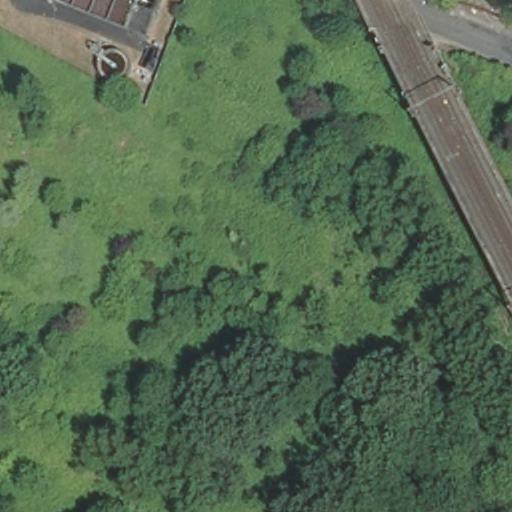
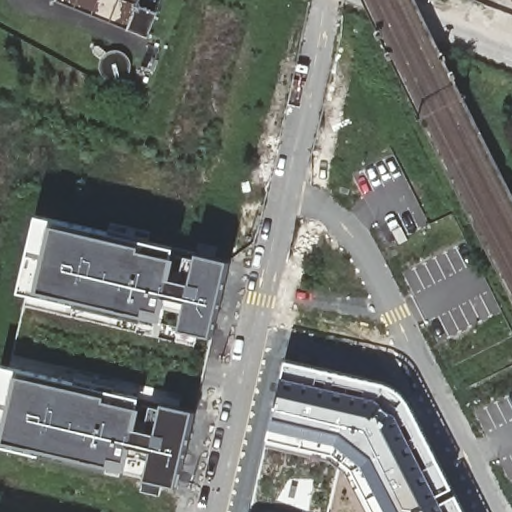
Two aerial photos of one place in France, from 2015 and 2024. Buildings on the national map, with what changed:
unchanged [(60,0),(165,0),(150,38),(60,0)]
new [(231,261),(180,489),(0,444),(0,397),(40,218),(231,261)]
new [(345,472),(339,467),(328,457),(266,443),(266,438),(269,425),(281,377),(285,359),(385,382),(397,389),(402,396),(407,403),(464,512),(366,512),(345,472)]
new [(328,457),(339,467),(330,512),(248,512),(266,443),(328,457)]

